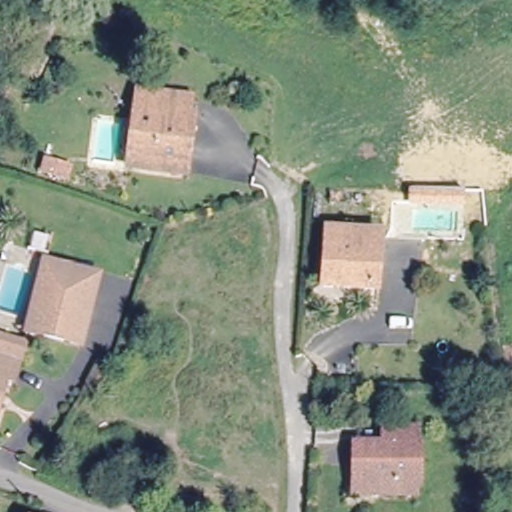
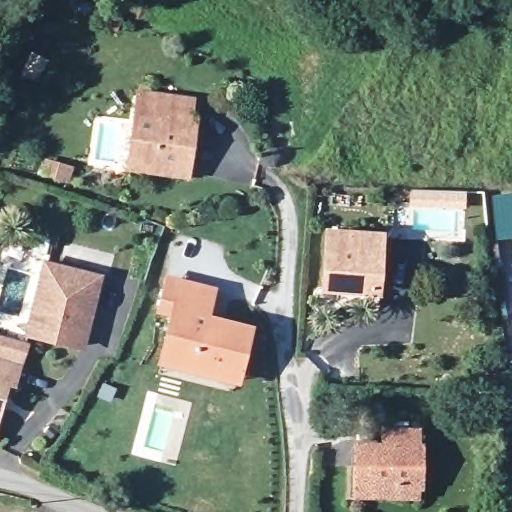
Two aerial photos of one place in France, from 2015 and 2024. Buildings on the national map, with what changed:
unchanged [(179,174),(130,167),(140,93),(157,96),(192,100),(190,117),(193,118),(189,147),(186,175),(179,174)]
new [(408,189),(465,191),(465,209),(407,205),(408,189)]
new [(512,238),(494,240),(490,195),(512,193),(512,238)]
unchanged [(324,288),(328,232),(352,234),(382,236),(381,255),(376,255),(373,292),(324,288)]
unchanged [(95,269),(72,356),(19,342),(42,255),(95,269)]
new [(164,275),(214,287),(209,304),(176,296),(173,307),(157,302),(164,275)]
new [(217,370),(187,362),(161,356),(163,347),(173,307),(176,296),(209,304),(205,322),(221,327),(224,316),(249,322),(237,366),(235,375),(217,370)]
unchanged [(20,348),(15,367),(0,363),(0,342),(20,348)]
unchanged [(15,367),(7,392),(5,391),(0,406),(0,363),(15,367)]
unchanged [(374,496),(355,495),(355,447),(383,447),(384,431),(418,432),(417,487),(417,497),(374,496)]

